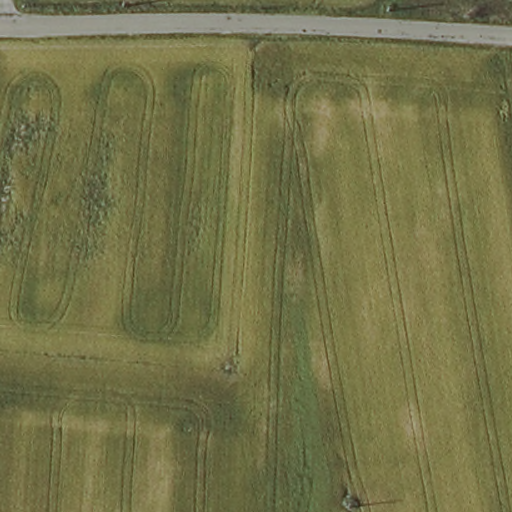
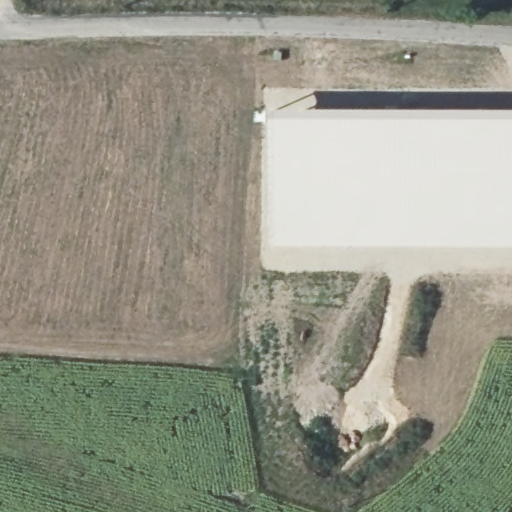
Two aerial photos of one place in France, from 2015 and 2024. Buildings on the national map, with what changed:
new [(357,111),(512,110),(512,247),(322,245),(271,245),(270,119),(357,115),(357,111)]

